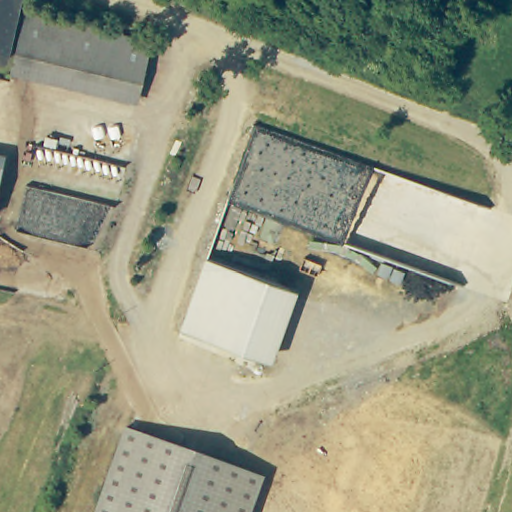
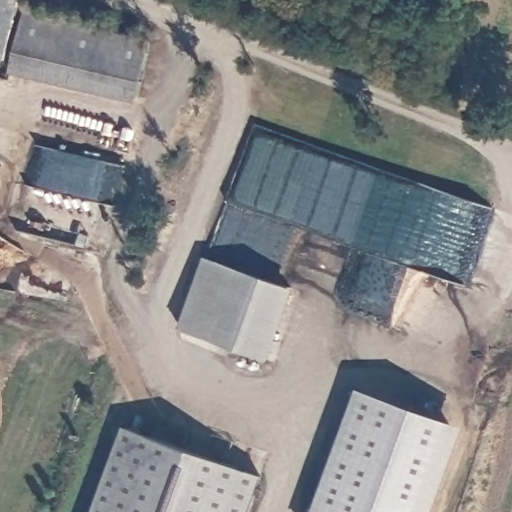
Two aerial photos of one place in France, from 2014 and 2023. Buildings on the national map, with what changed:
unchanged [(16,60),(0,57),(0,0),(30,0),(16,60)]
unchanged [(161,41),(150,91),(24,62),(35,12),(161,41)]
unchanged [(0,192),(0,163),(6,165),(0,192)]
unchanged [(297,291),(270,361),(180,328),(205,258),(297,291)]
new [(315,512),(358,388),(468,427),(438,512),(315,512)]
unchanged [(261,475),(247,512),(96,512),(126,427),(261,475)]

